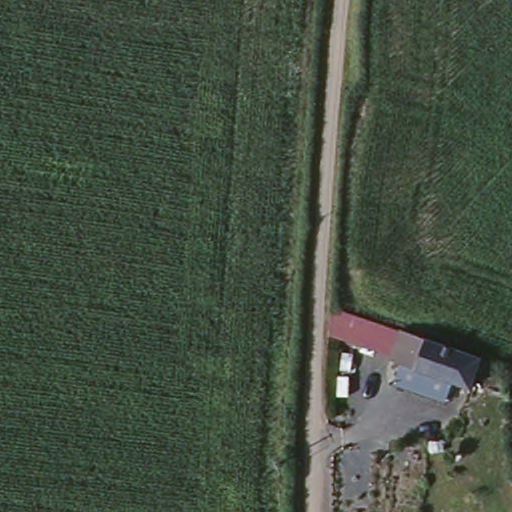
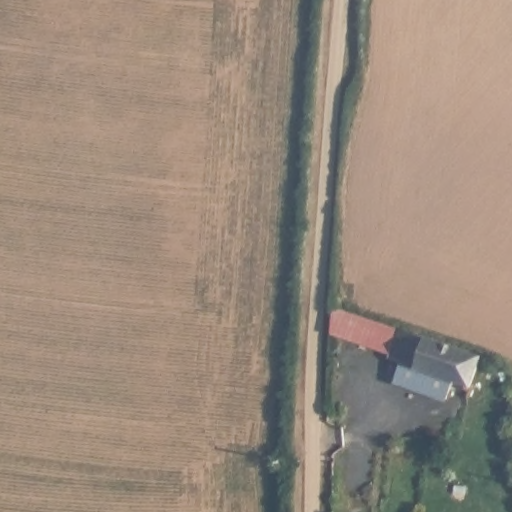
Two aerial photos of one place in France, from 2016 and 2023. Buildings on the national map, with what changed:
unchanged [(481,360),(471,391),(330,339),(337,313),(481,360)]

